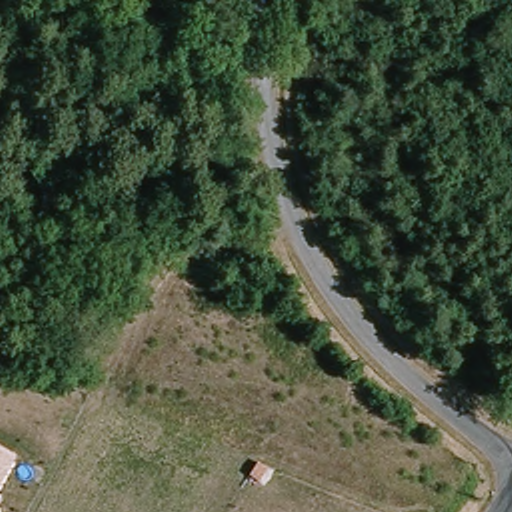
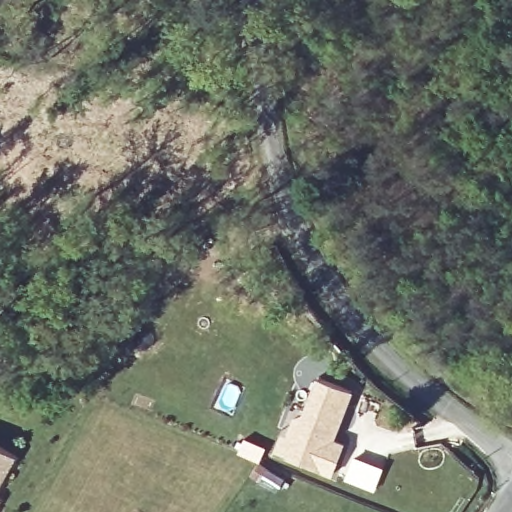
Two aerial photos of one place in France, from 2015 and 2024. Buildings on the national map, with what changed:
new [(353,390),(335,438),(344,442),(333,475),(275,450),(281,433),(288,435),(293,416),(304,412),(317,376),(353,390)]
unchanged [(0,485),(0,446),(16,455),(0,485)]
unchanged [(0,497),(1,497),(0,498),(0,497)]

